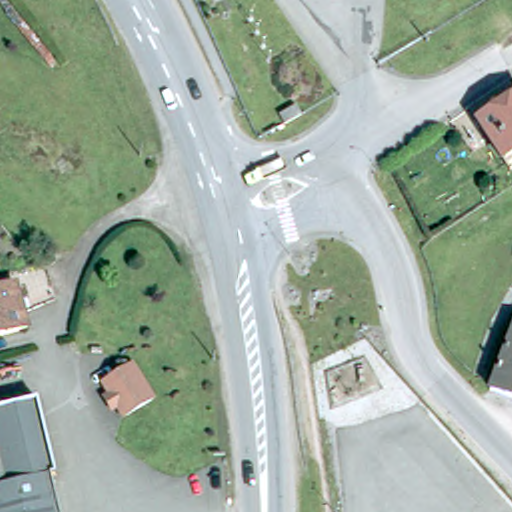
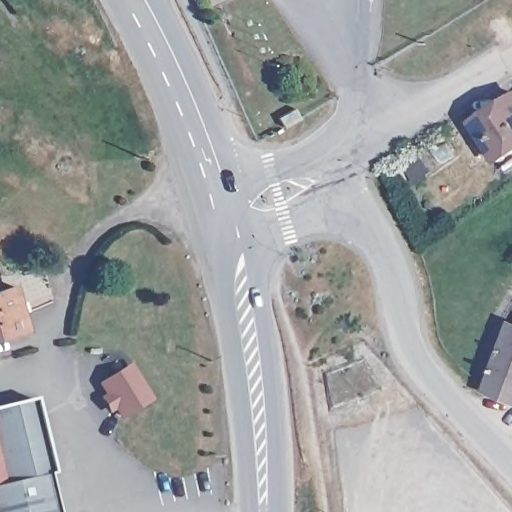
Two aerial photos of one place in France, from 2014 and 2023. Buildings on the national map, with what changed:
unchanged [(512,154),(499,162),(475,123),(512,99),(512,154)]
unchanged [(16,289),(32,329),(0,339),(0,294),(16,289)]
unchanged [(512,339),(512,399),(490,390),(512,339)]
unchanged [(117,419),(98,387),(128,368),(147,400),(117,419)]
unchanged [(3,491),(0,479),(0,417),(25,410),(33,442),(41,440),(45,452),(50,450),(53,461),(46,464),(51,478),(43,480),(52,512),(0,512),(0,492),(3,491)]
unchanged [(0,492),(0,479),(3,491),(0,492)]

